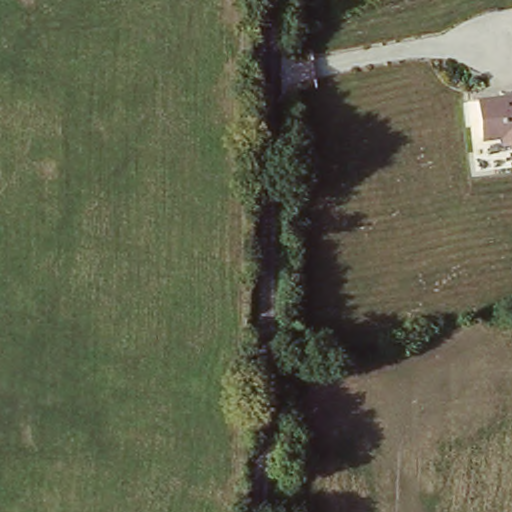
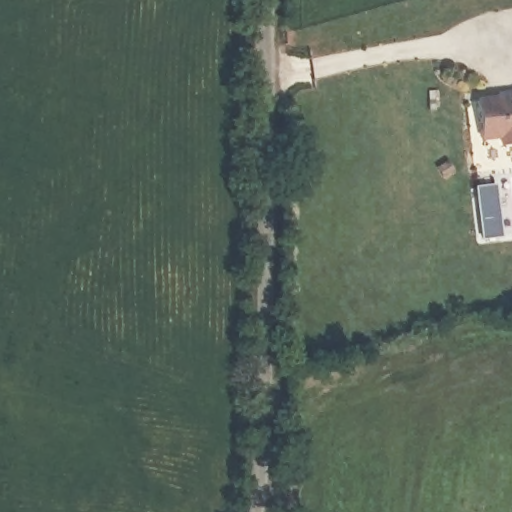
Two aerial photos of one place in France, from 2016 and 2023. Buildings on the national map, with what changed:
unchanged [(512,151),(500,153),(498,139),(476,144),(474,101),(512,97),(512,151)]
new [(494,189),(500,239),(481,241),(475,191),(494,189)]

